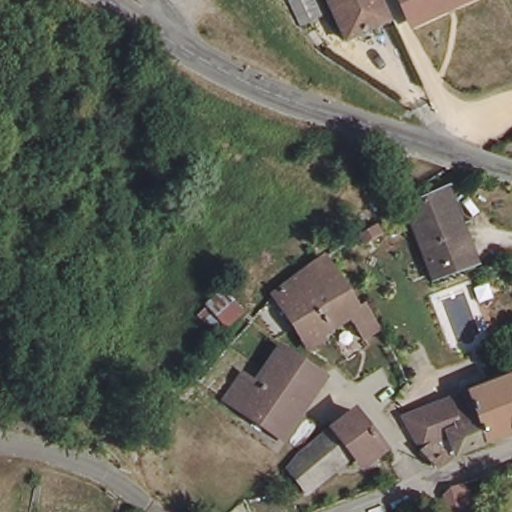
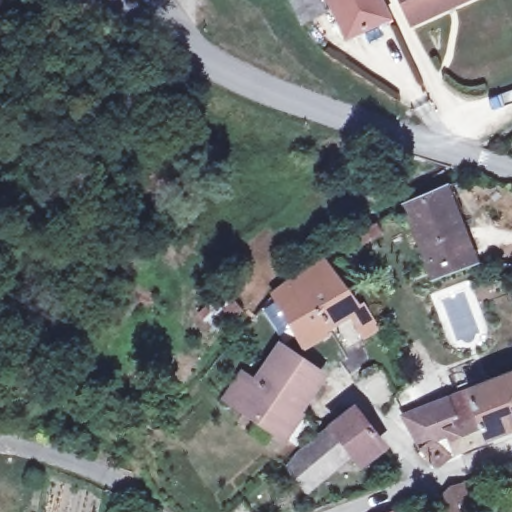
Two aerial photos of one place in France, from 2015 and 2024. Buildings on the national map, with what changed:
unchanged [(315,0),(321,16),(308,21),(299,0),(315,0)]
unchanged [(373,0),(371,1),(383,28),(347,42),(335,16),(338,15),(333,0),(373,0)]
unchanged [(428,18),(427,15),(413,20),(404,0),(471,0),(448,10),(428,18)]
unchanged [(401,207),(400,202),(445,187),(477,266),(457,274),(437,282),(401,207)]
unchanged [(323,262),(363,318),(367,317),(381,340),(366,347),(353,322),(305,349),(275,301),(323,262)]
unchanged [(215,302),(248,270),(266,288),(231,319),(215,302)]
unchanged [(300,450),(279,436),(227,400),(244,376),(257,384),(282,348),(321,378),(296,411),(317,426),(300,450)]
unchanged [(394,418),(403,415),(432,402),(433,404),(509,372),(510,375),(512,374),(512,422),(435,453),(422,463),(406,447),(394,418)]
unchanged [(287,467),(355,413),(382,446),(360,463),(355,456),(308,492),(287,467)]
unchanged [(451,499),(468,492),(472,502),(455,509),(451,499)]

